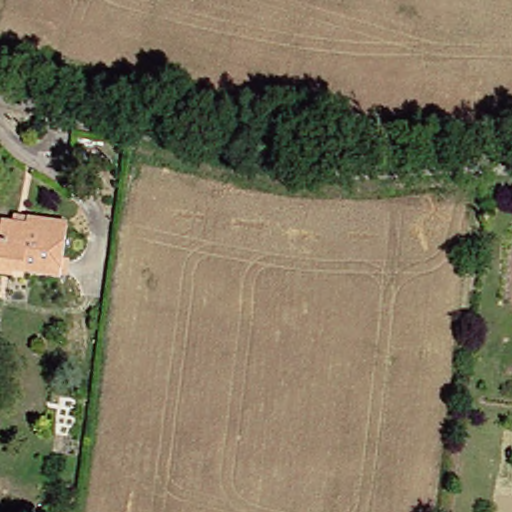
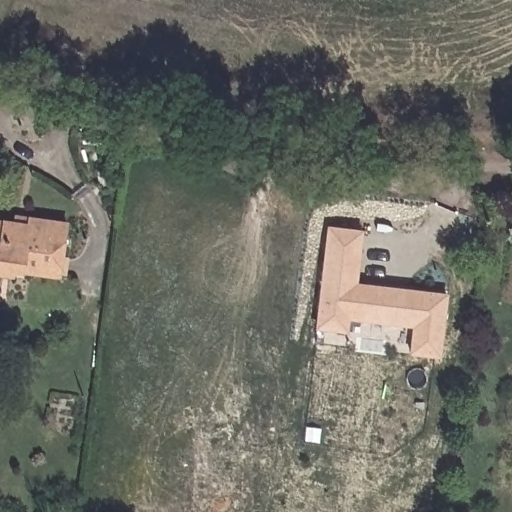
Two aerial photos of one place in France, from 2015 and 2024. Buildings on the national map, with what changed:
unchanged [(22,209),(37,211),(73,217),(65,268),(31,263),(28,263),(5,261),(6,252),(0,251),(0,216),(19,219),(22,209)]
new [(330,230),(362,234),(360,249),(356,286),(447,296),(440,357),(412,353),(415,327),(349,318),(347,332),(318,328),(328,245),(330,230)]
unchanged [(6,252),(5,261),(28,263),(27,271),(0,267),(0,251),(6,252)]

